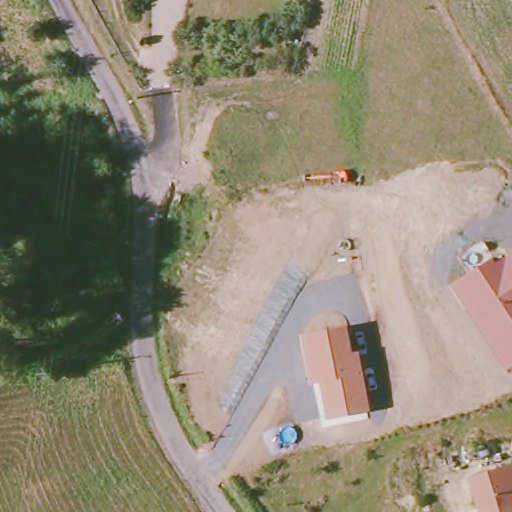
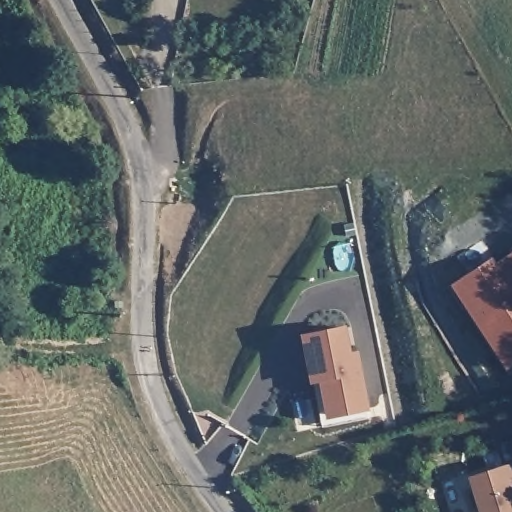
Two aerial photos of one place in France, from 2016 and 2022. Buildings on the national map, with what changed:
unchanged [(450,282),(500,253),(504,257),(512,252),(512,365),(503,370),(450,282)]
unchanged [(344,325),(349,351),(356,349),(366,408),(324,416),(317,383),(307,383),(301,330),(344,325)]
unchanged [(467,479),(512,465),(512,512),(477,512),(467,479)]

